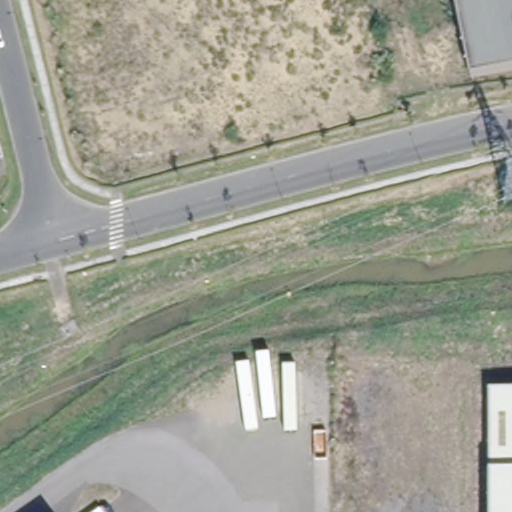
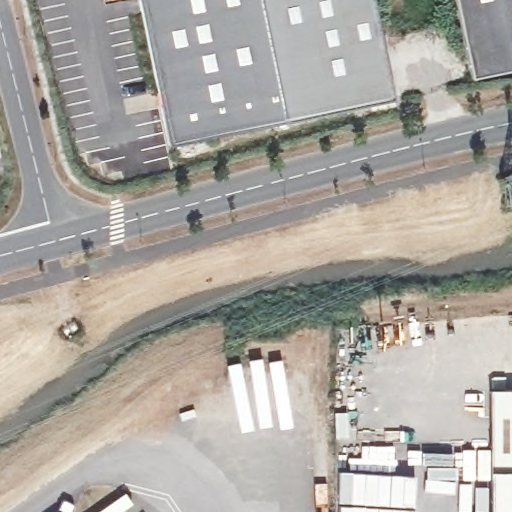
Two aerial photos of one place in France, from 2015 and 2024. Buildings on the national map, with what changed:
new [(169,141),(142,0),(261,0),(285,119),(169,141)]
new [(285,119),(261,0),(374,0),(393,98),(285,119)]
unchanged [(455,0),(512,0),(512,72),(471,81),(455,0)]
unchanged [(512,512),(486,512),(485,391),(512,390),(512,512)]

